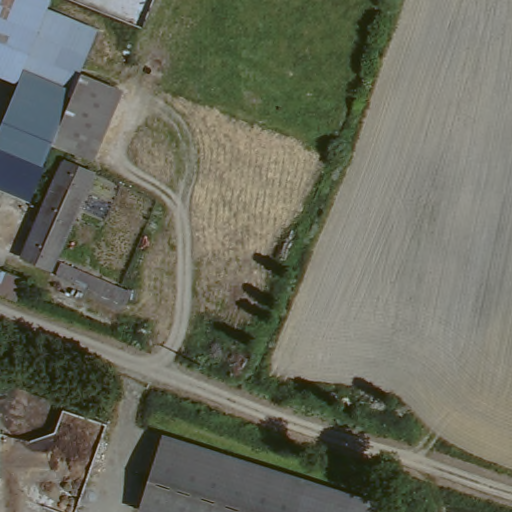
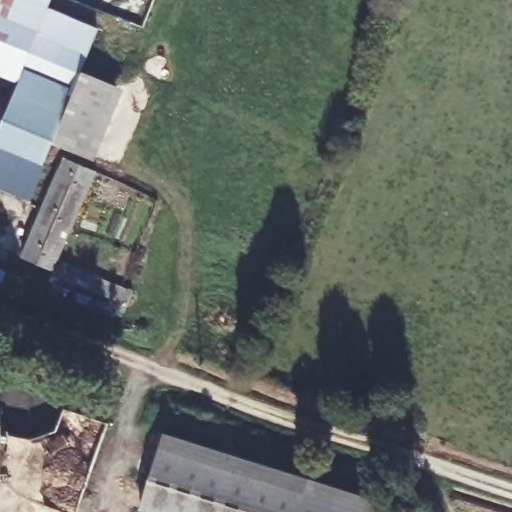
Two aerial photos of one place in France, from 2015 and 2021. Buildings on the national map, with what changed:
unchanged [(0,0),(53,0),(50,6),(33,47),(24,67),(0,57),(0,0)]
unchanged [(103,27),(86,68),(33,47),(50,6),(103,27)]
unchanged [(33,47),(86,68),(86,70),(67,114),(56,139),(46,163),(0,144),(0,125),(24,67),(33,47)]
unchanged [(67,114),(86,70),(119,84),(90,153),(56,139),(67,114)]
unchanged [(0,180),(0,144),(46,163),(34,194),(0,180)]
unchanged [(21,253),(29,236),(64,157),(95,170),(53,266),(21,253)]
unchanged [(57,273),(63,261),(133,290),(128,301),(57,273)]
unchanged [(12,298),(0,292),(0,269),(21,277),(12,298)]
unchanged [(377,512),(146,512),(138,510),(168,427),(245,454),(380,501),(377,512)]

